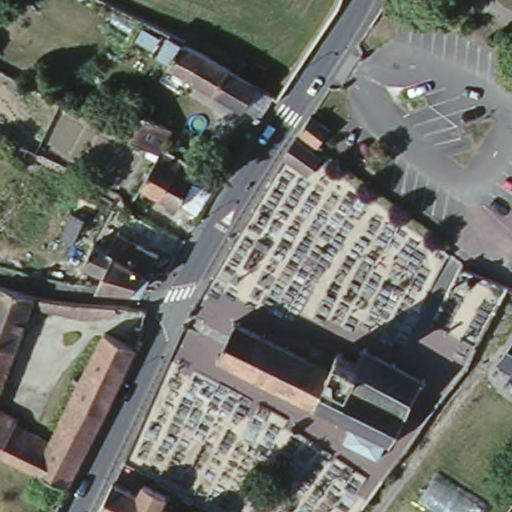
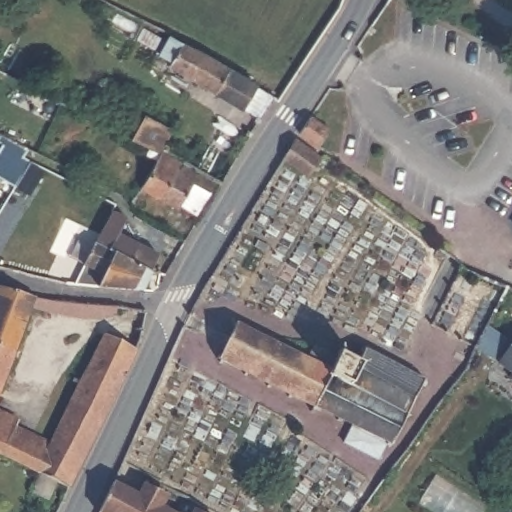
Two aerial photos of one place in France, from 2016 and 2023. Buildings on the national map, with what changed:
unchanged [(239,75),(254,85),(240,109),(167,65),(169,62),(157,55),(169,35),(206,55),(239,75)]
unchanged [(336,125),(323,142),(306,129),(316,112),(336,125)]
unchanged [(149,170),(158,155),(156,152),(131,140),(144,116),(170,130),(158,149),(187,164),(197,170),(177,208),(125,180),(134,163),(149,170)]
new [(20,186),(0,176),(0,138),(35,155),(20,186)]
unchanged [(308,175),(282,157),(295,138),(320,157),(308,175)]
unchanged [(83,219),(72,242),(60,237),(71,214),(83,219)]
unchanged [(105,223),(119,230),(116,235),(156,255),(149,272),(95,242),(105,223)]
unchanged [(101,273),(84,263),(95,242),(149,272),(141,290),(96,286),(101,273)]
unchanged [(111,312),(110,318),(92,321),(75,324),(25,313),(0,376),(0,292),(41,304),(97,310),(111,312)]
unchanged [(235,328),(305,362),(311,349),(335,360),(337,357),(357,367),(363,355),(422,384),(390,448),(385,446),(377,462),(342,446),(350,429),(216,362),(235,328)]
unchanged [(97,338),(130,353),(62,492),(0,460),(0,418),(12,424),(10,430),(45,447),(97,338)]
unchanged [(498,362),(512,341),(512,370),(498,362)]
unchanged [(510,378),(512,375),(512,379),(510,378)]
unchanged [(98,510),(111,479),(136,492),(142,482),(166,495),(160,505),(173,512),(102,512),(98,510)]
unchanged [(191,508),(199,512),(189,512),(191,508)]

